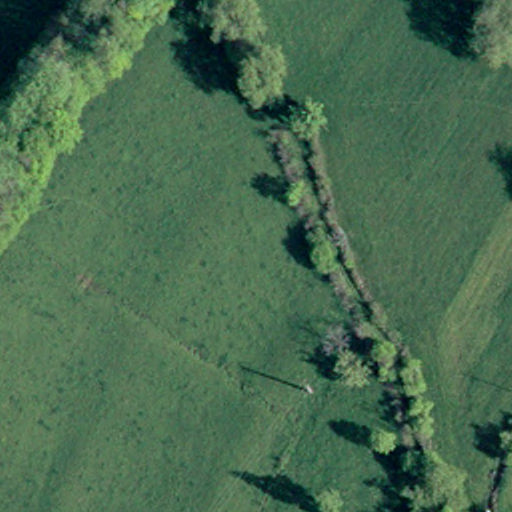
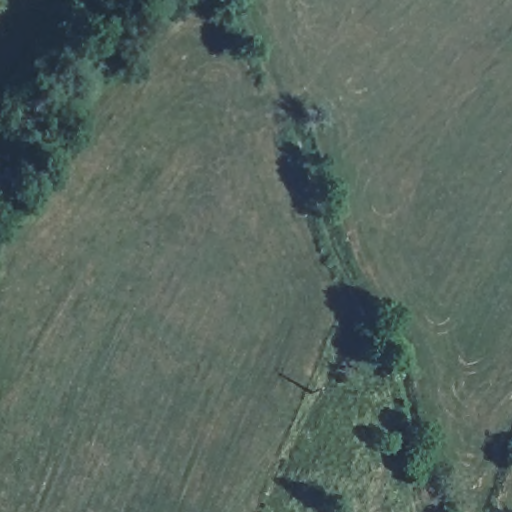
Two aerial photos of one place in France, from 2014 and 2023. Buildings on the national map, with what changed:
unchanged [(484,445),(509,454),(494,494),(471,485),(484,445)]

